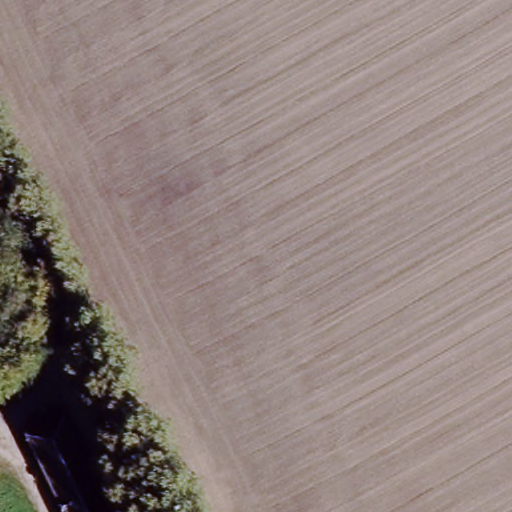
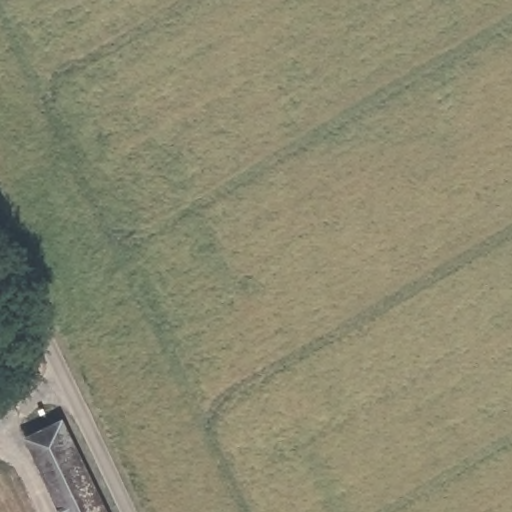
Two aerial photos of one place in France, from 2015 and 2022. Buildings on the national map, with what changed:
unchanged [(20,440),(70,412),(116,512),(52,512),(20,440)]

